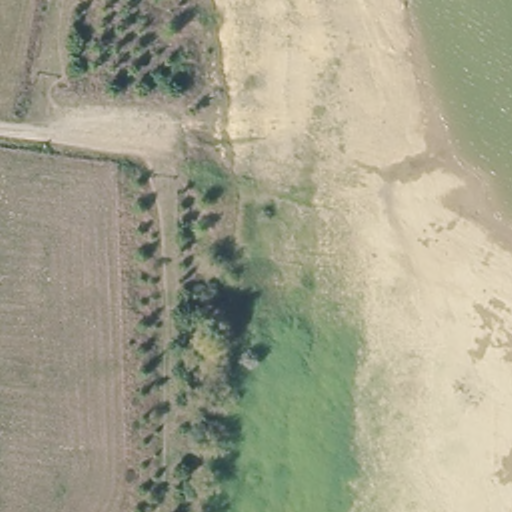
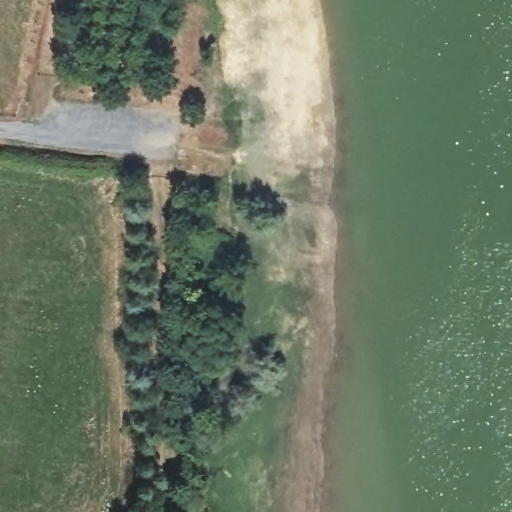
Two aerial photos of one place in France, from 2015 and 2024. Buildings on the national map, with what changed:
[]

